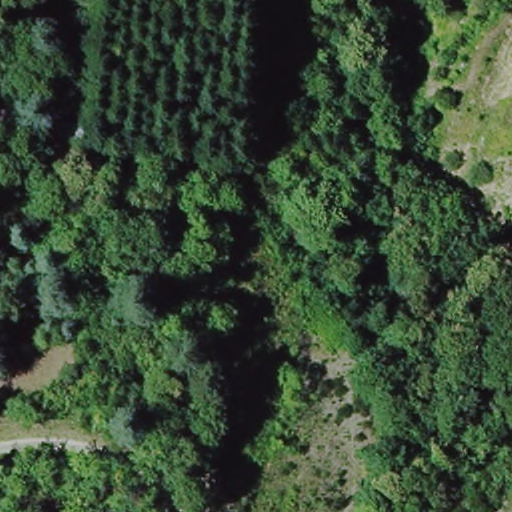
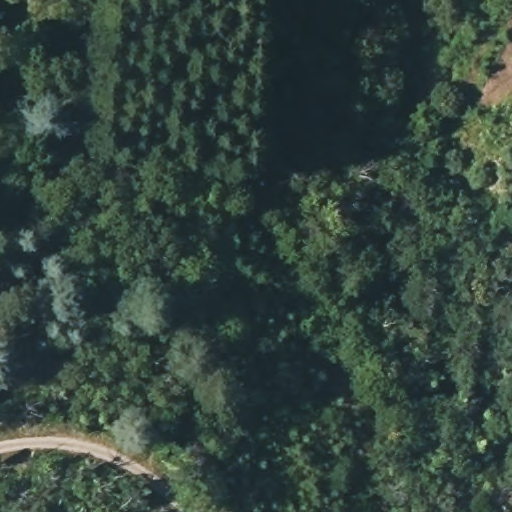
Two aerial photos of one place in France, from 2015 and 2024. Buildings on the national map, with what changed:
unchanged [(47,183),(45,161),(77,157),(80,179),(47,183)]
unchanged [(205,197),(190,196),(165,194),(167,169),(190,170),(207,172),(205,197)]
unchanged [(9,203),(10,218),(0,221),(0,205),(9,203)]

